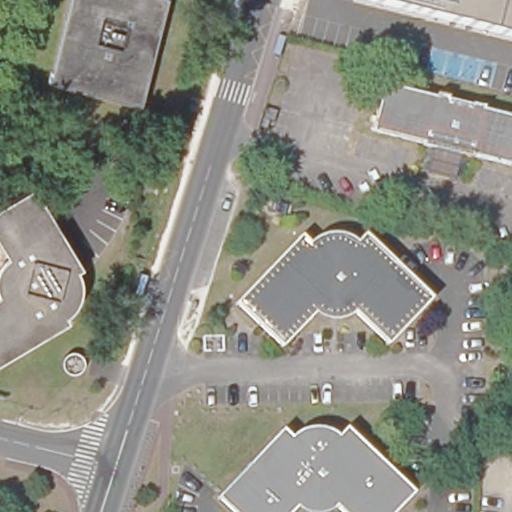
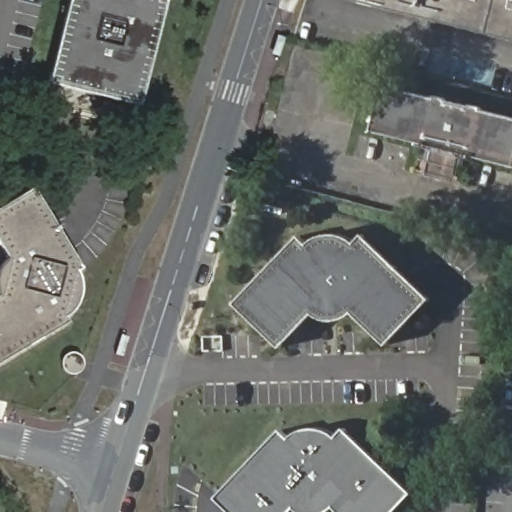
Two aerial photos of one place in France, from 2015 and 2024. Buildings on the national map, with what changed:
unchanged [(41,78),(64,0),(161,0),(130,105),(41,78)]
unchanged [(363,0),(512,0),(512,36),(363,0)]
unchanged [(423,143),(370,128),(382,82),(512,118),(512,168),(472,156),(423,143)]
unchanged [(465,180),(417,167),(423,143),(472,156),(465,180)]
unchanged [(0,248),(0,202),(30,184),(77,262),(71,265),(73,269),(73,276),(73,282),(73,286),(71,293),(69,300),(65,306),(61,310),(65,315),(0,354),(0,256),(3,254),(0,248)]
unchanged [(294,234),(301,241),(305,238),(309,235),(313,234),(318,232),(323,230),(328,230),(333,231),(338,232),(343,234),(348,237),(350,238),(359,229),(426,293),(383,339),(351,309),(350,311),(346,315),(341,318),(336,319),(331,320),(327,320),(322,320),(316,319),(311,315),(308,313),(278,345),(232,300),(294,234)]
unchanged [(61,364),(62,361),(64,359),(65,357),(66,356),(69,355),(71,354),(74,355),(77,356),(78,358),(81,359),(82,362),(82,364),(82,367),(81,369),(80,372),(79,374),(76,375),(74,376),(71,376),(68,375),(65,374),(63,372),(61,369),(61,367),(61,364)]
unchanged [(269,430),(277,436),(278,434),(282,431),(287,429),(291,427),(296,426),(301,426),(305,425),(311,426),(315,428),(320,430),(326,434),(333,426),(402,491),(382,512),(333,512),(326,506),(323,509),(318,512),(290,512),(284,509),(281,512),(224,512),(206,496),(269,430)]

